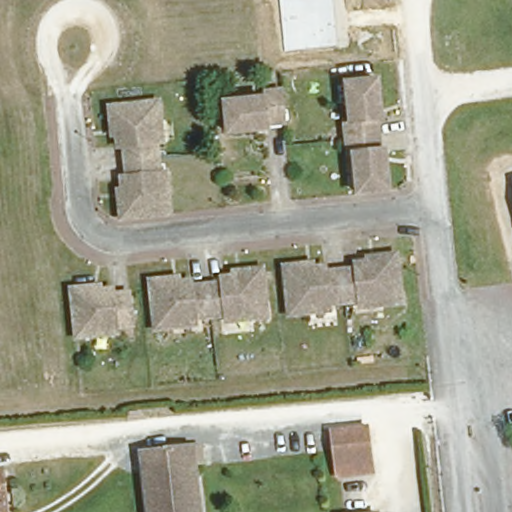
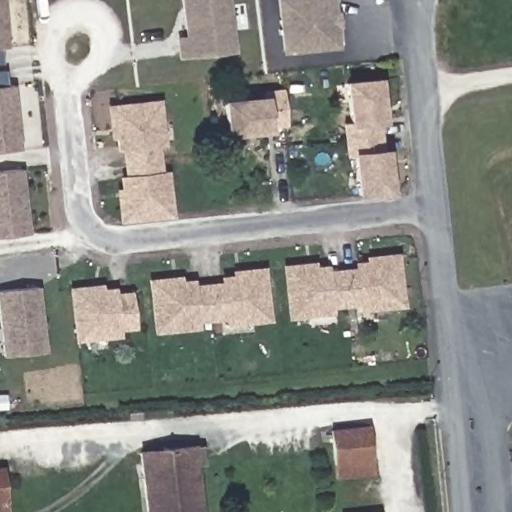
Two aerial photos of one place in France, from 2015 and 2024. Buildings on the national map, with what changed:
new [(5,0),(9,47),(0,48),(0,0),(5,0)]
new [(229,0),(236,53),(177,59),(176,37),(184,36),(180,0),(229,0)]
unchanged [(287,51),(280,0),(332,0),(337,47),(287,51)]
unchanged [(377,117),(379,134),(348,138),(347,122),(352,122),(347,82),(380,77),(382,108),(383,117),(377,117)]
new [(0,152),(0,86),(14,85),(22,150),(0,152)]
unchanged [(260,136),(231,140),(227,110),(266,105),(266,98),(282,96),(286,127),(272,129),(272,135),(260,136)]
unchanged [(127,147),(122,148),(122,137),(116,137),(115,126),(113,108),(162,102),(167,144),(161,145),(162,159),(128,163),(127,147)]
unchanged [(381,150),(387,150),(388,161),(392,189),(360,192),(356,155),(350,156),(348,138),(379,134),(381,150)]
unchanged [(126,189),(125,179),(130,178),(128,163),(162,159),(164,174),(171,174),(175,213),(125,219),(123,202),(122,190),(126,189)]
new [(0,237),(0,171),(22,169),(22,170),(30,234),(0,237)]
unchanged [(360,314),(360,306),(342,308),(337,277),(352,276),(352,269),(365,267),(365,262),(377,261),(395,257),(401,308),(360,314)]
unchanged [(328,317),(288,322),(282,272),(301,270),(312,268),(313,273),(324,272),(325,279),(337,277),(342,308),(328,310),(328,317)]
unchanged [(222,289),(221,282),(232,282),(232,276),(245,275),(262,272),(267,323),(227,327),(227,320),(211,322),(207,291),(222,289)]
unchanged [(197,332),(156,336),(151,287),(167,285),(180,283),(180,288),(194,287),(195,292),(207,291),(211,322),(197,323),(197,332)]
new [(46,351),(3,356),(0,328),(0,290),(40,286),(46,351)]
unchanged [(102,287),(102,292),(114,292),(114,296),(129,295),(132,327),(117,328),(118,337),(75,342),(70,292),(88,288),(102,287)]
unchanged [(336,477),(334,465),(331,430),(366,425),(370,461),(372,473),(336,477)]
unchanged [(140,452),(161,450),(161,446),(166,445),(167,448),(192,446),(200,512),(146,512),(140,452)]
unchanged [(2,468),(6,512),(0,512),(0,468),(2,468)]

